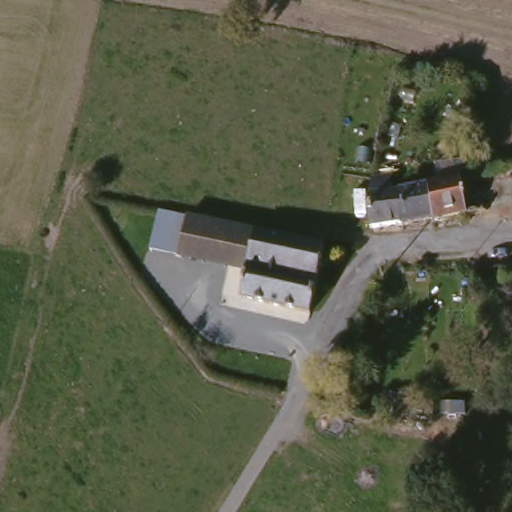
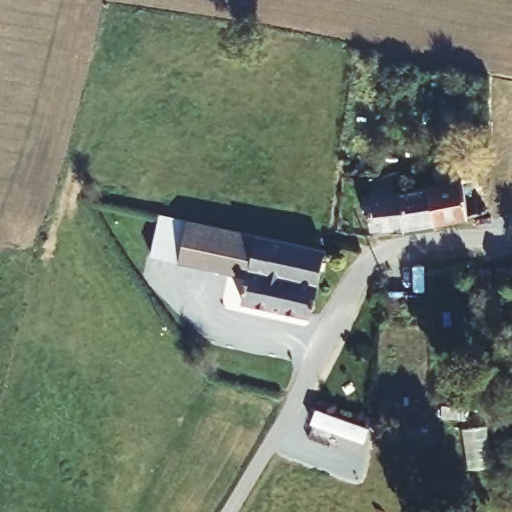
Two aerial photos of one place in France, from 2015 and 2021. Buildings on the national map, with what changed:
unchanged [(425,186),(460,182),(467,222),(430,225),(425,186)]
unchanged [(395,190),(425,186),(430,225),(399,228),(395,190)]
unchanged [(381,192),(395,190),(399,228),(366,231),(362,194),(381,192)]
unchanged [(149,252),(157,214),(189,220),(180,258),(149,252)]
unchanged [(189,220),(255,235),(245,273),(180,258),(189,220)]
unchanged [(325,251),(311,322),(239,306),(245,273),(255,235),(325,251)]
unchanged [(481,270),(512,271),(512,303),(478,302),(481,270)]

